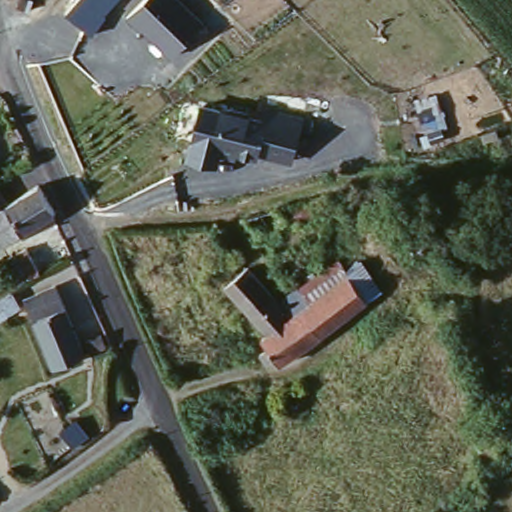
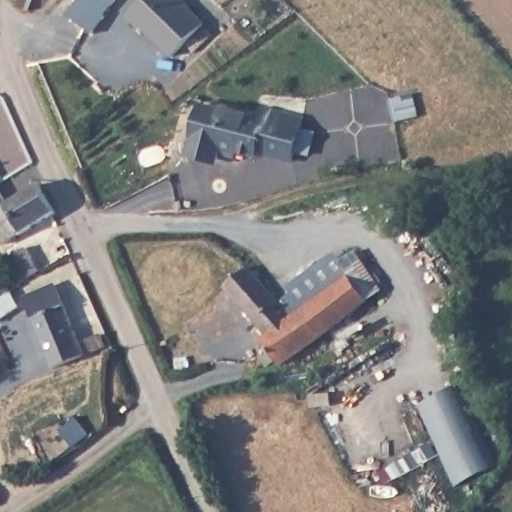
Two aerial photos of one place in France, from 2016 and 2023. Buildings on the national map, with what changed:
unchanged [(66,14),(78,0),(122,0),(92,34),(66,14)]
unchanged [(127,15),(142,0),(183,0),(206,23),(172,57),(127,15)]
unchanged [(222,110),(250,117),(263,123),(268,107),(304,118),(291,165),(258,156),(257,161),(237,156),(236,161),(220,157),(218,167),(185,159),(200,104),(222,110)]
unchanged [(1,186),(10,200),(0,205),(0,185),(1,186)]
unchanged [(4,245),(0,238),(0,212),(46,186),(62,213),(4,245)]
unchanged [(21,286),(6,259),(28,247),(43,273),(21,286)]
unchanged [(266,336),(229,288),(254,270),(277,302),(290,293),(286,289),(334,254),(340,262),(355,252),(385,291),(370,303),(285,367),(282,363),(274,370),(265,358),(273,351),(267,344),(263,338),(266,336)]
unchanged [(58,286),(87,357),(56,370),(28,299),(58,286)]
new [(463,385),(499,468),(455,490),(418,406),(463,385)]
unchanged [(76,419),(88,437),(72,448),(60,431),(76,419)]

